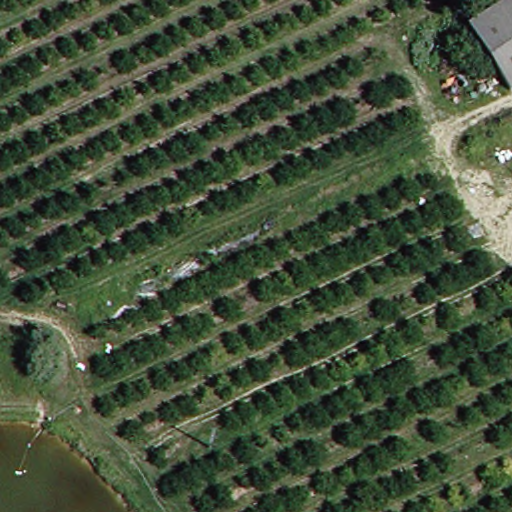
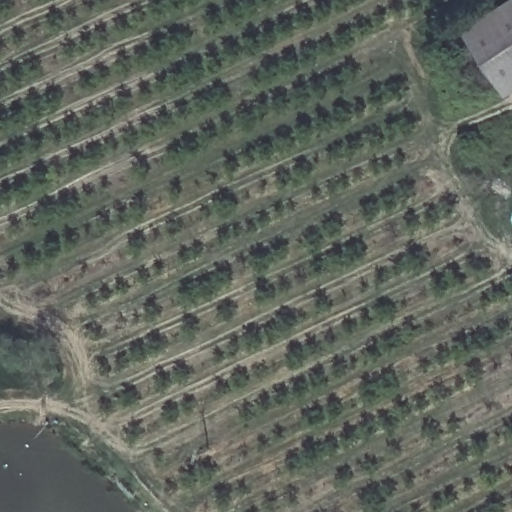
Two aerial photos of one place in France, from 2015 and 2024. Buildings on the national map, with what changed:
unchanged [(472,36),(469,31),(512,2),(512,91),(510,93),(500,79),(484,54),(472,36)]

